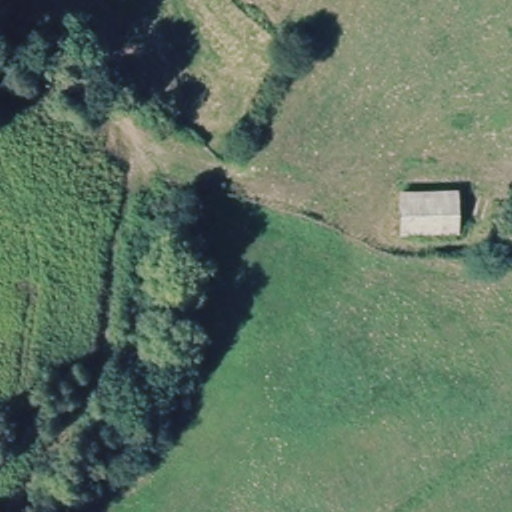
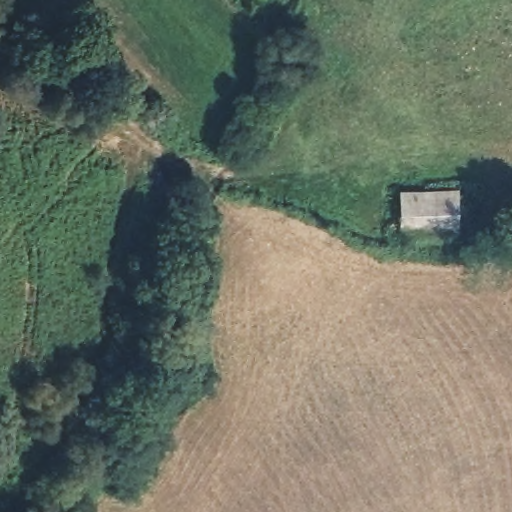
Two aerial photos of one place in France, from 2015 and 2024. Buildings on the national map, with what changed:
unchanged [(452,194),(454,201),(456,233),(402,235),(402,226),(400,195),(452,194)]

